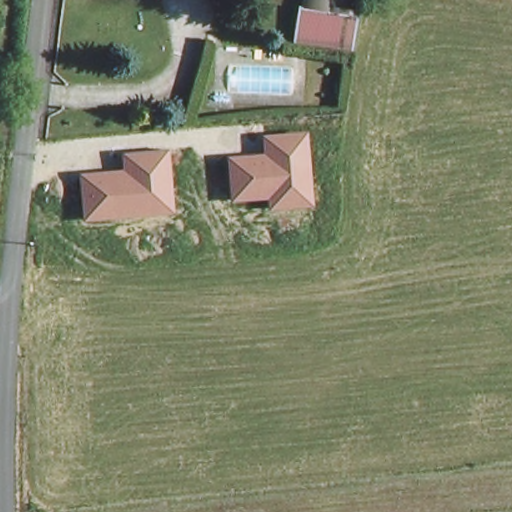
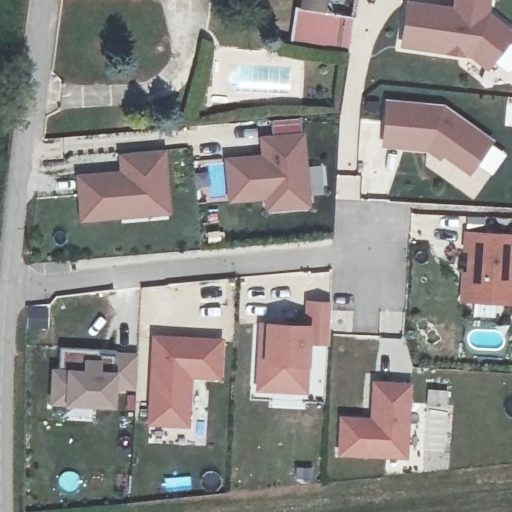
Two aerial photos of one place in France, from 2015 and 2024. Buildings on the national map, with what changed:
unchanged [(294,2),(301,2),(301,0),(357,0),(349,51),(291,39),(294,2)]
new [(399,47),(406,0),(451,6),(452,0),(491,0),(489,12),(512,30),(512,40),(486,72),(469,57),(399,47)]
new [(439,161),(426,150),(381,147),(384,100),(444,105),(493,141),(469,176),(443,157),(439,161)]
unchanged [(259,154),(258,136),(304,132),(311,207),(265,211),(264,200),(227,204),(223,157),(259,154)]
unchanged [(119,171),(118,154),(164,150),(170,214),(79,222),(75,175),(119,171)]
new [(466,270),(465,251),(462,251),(463,231),(512,232),(512,304),(459,302),(459,271),(466,270)]
new [(267,326),(307,326),(308,303),(328,303),(328,342),(306,342),(305,363),(306,392),(259,390),(261,324),(267,326)]
new [(217,347),(215,390),(186,390),(184,437),(143,436),(144,346),(217,347)]
new [(116,361),(116,367),(131,366),(131,401),(109,401),(109,422),(60,422),(59,417),(44,417),(44,381),(54,380),(55,360),(116,361)]
new [(366,427),(367,391),(404,390),(403,467),(334,467),(335,427),(366,427)]

